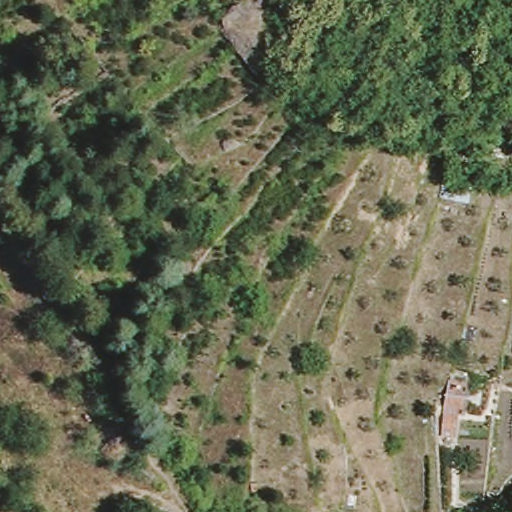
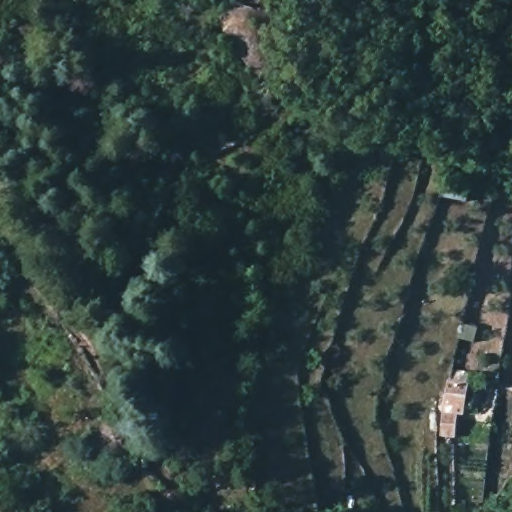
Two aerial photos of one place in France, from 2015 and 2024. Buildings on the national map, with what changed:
unchanged [(449,369),(467,372),(466,383),(470,384),(465,413),(444,411),(449,369)]

